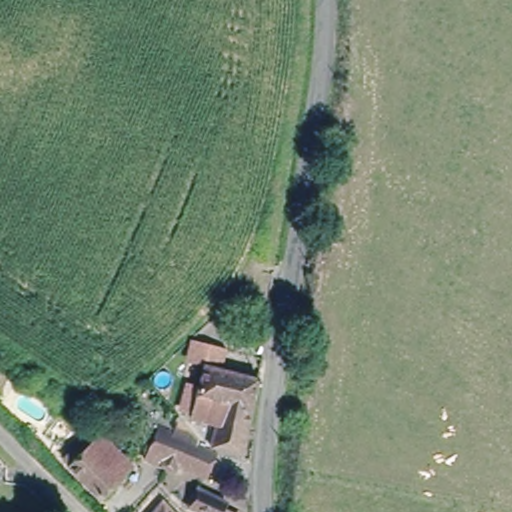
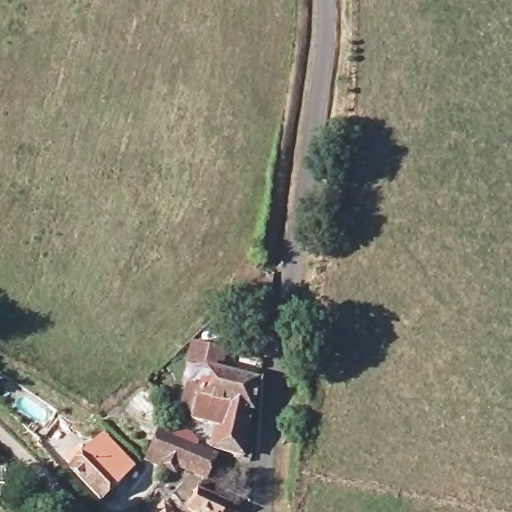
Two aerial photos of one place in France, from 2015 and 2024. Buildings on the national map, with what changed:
unchanged [(214,455),(216,432),(198,428),(201,408),(184,402),(186,386),(177,384),(180,365),(190,368),(191,362),(207,365),(211,337),(226,341),(221,368),(257,377),(244,440),(237,461),(214,455)]
unchanged [(199,437),(197,457),(208,461),(204,478),(185,471),(184,478),(165,473),(154,470),(168,424),(174,426),(199,437)]
unchanged [(106,500),(78,468),(81,463),(75,458),(90,445),(97,451),(110,438),(134,465),(106,500)]
unchanged [(197,492),(229,497),(230,512),(202,512),(195,504),(197,492)]
unchanged [(170,506),(175,512),(164,512),(167,509),(170,506)]

